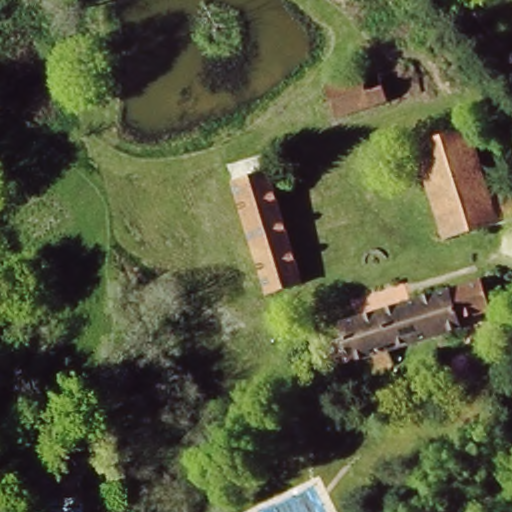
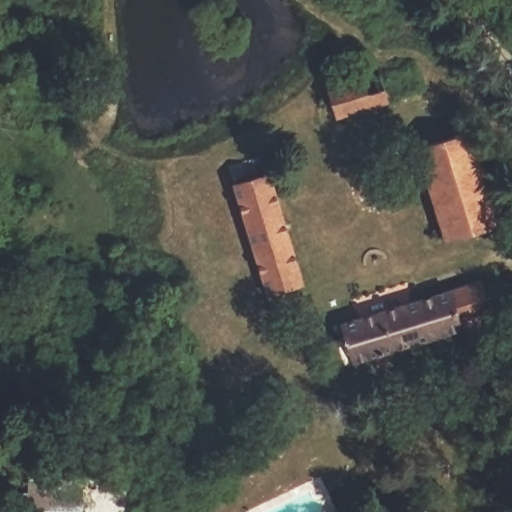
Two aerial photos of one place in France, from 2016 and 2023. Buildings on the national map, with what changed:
unchanged [(323,89),(366,73),(383,105),(330,119),(323,89)]
unchanged [(504,175),(512,205),(512,216),(442,238),(417,151),(475,134),(489,180),(504,175)]
unchanged [(302,275),(263,294),(227,183),(273,172),(302,275)]
unchanged [(494,315),(348,360),(337,317),(479,274),(494,315)]
unchanged [(32,479),(85,481),(85,512),(32,512),(32,479)]

